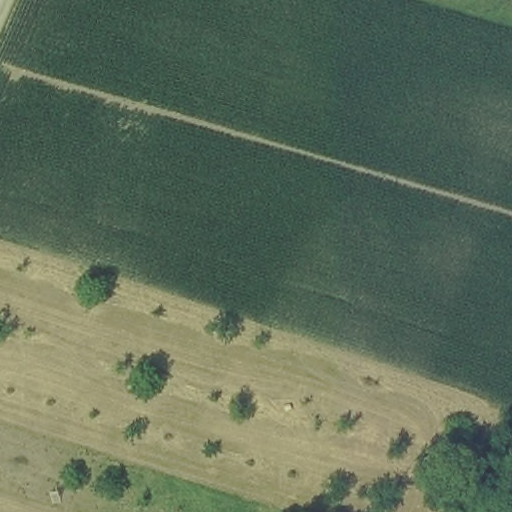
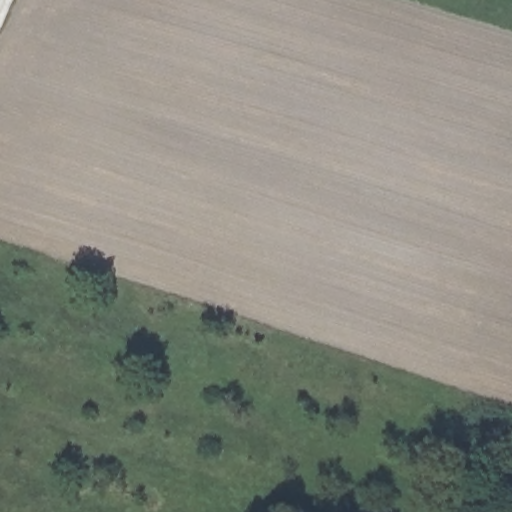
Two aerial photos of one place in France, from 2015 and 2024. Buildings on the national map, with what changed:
unchanged [(18,75),(32,80),(27,91),(14,86),(18,75)]

